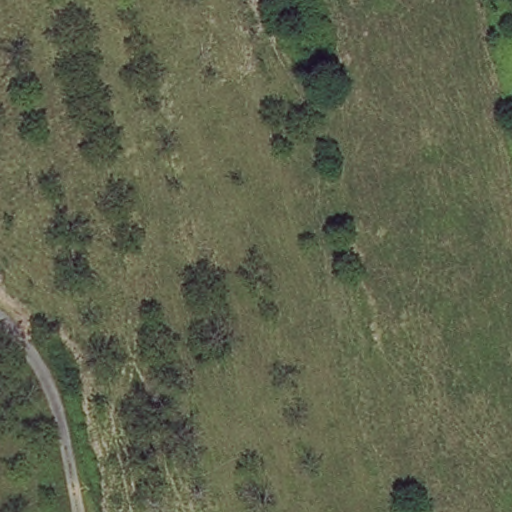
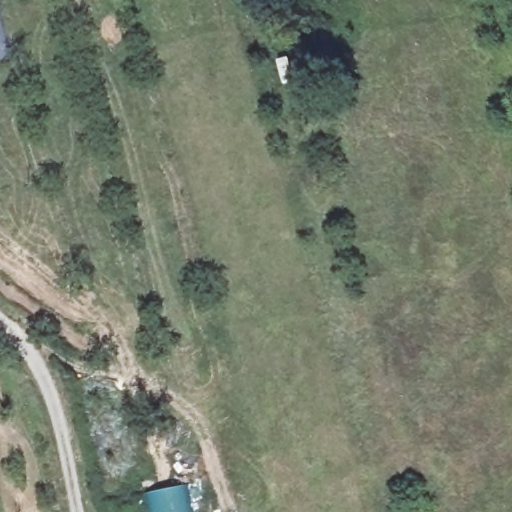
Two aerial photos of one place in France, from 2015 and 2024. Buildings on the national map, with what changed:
new [(192,512),(146,512),(142,493),(185,485),(192,512)]

